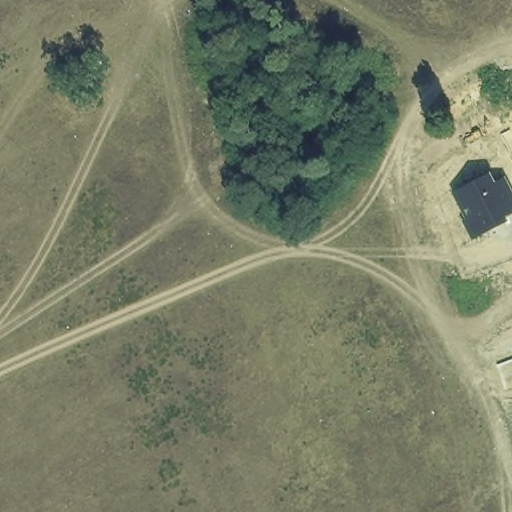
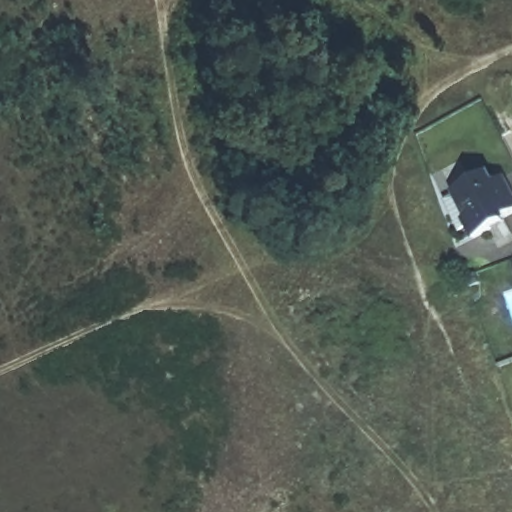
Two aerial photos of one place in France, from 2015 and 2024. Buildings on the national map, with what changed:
unchanged [(512,190),(512,213),(507,216),(508,220),(474,241),(463,219),(466,217),(453,194),(490,174),(496,184),(505,178),(512,190)]

